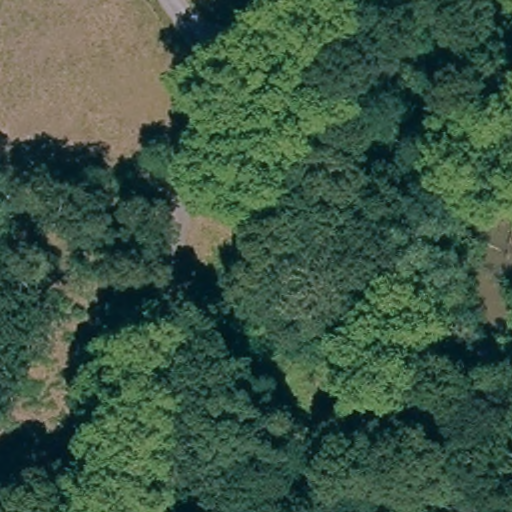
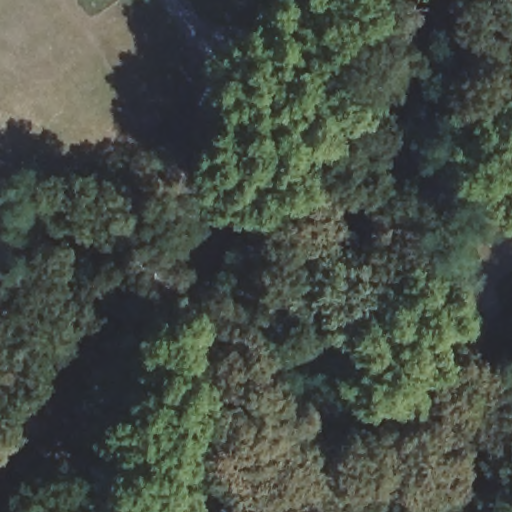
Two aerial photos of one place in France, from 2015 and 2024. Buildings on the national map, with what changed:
[]

